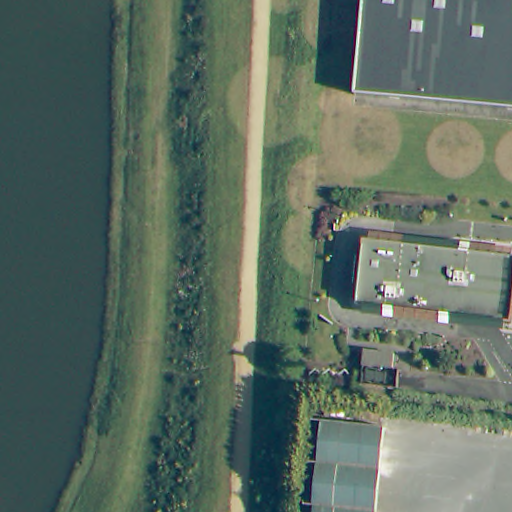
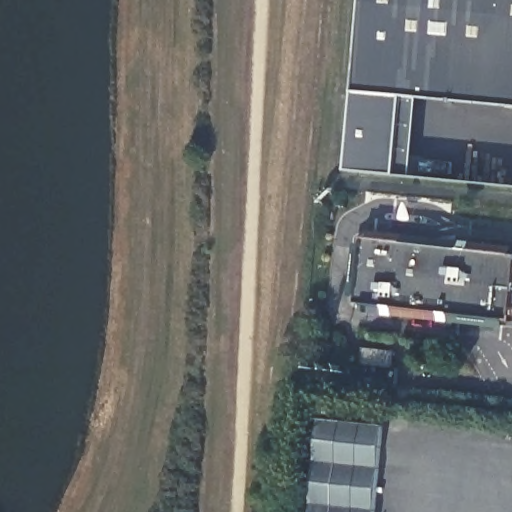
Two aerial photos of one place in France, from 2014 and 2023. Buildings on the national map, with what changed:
unchanged [(365,0),(512,0),(512,114),(356,99),(365,0)]
new [(420,105),(413,177),(348,171),(356,99),(420,105)]
unchanged [(353,279),(358,279),(359,269),(354,269),(358,235),(512,253),(512,262),(506,319),(350,301),(353,279)]
unchanged [(386,364),(356,361),(358,346),(388,349),(386,364)]
unchanged [(383,512),(307,512),(317,419),(393,427),(383,512)]

